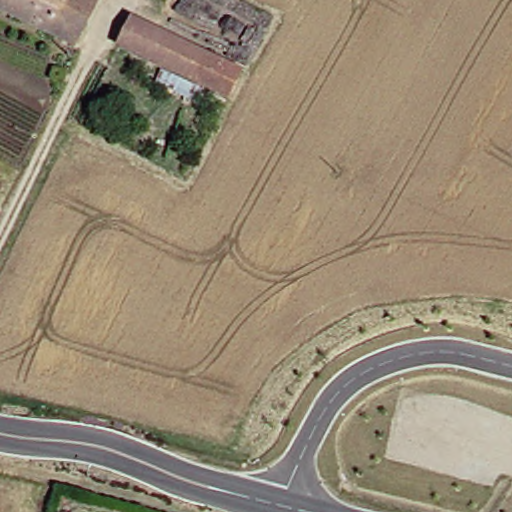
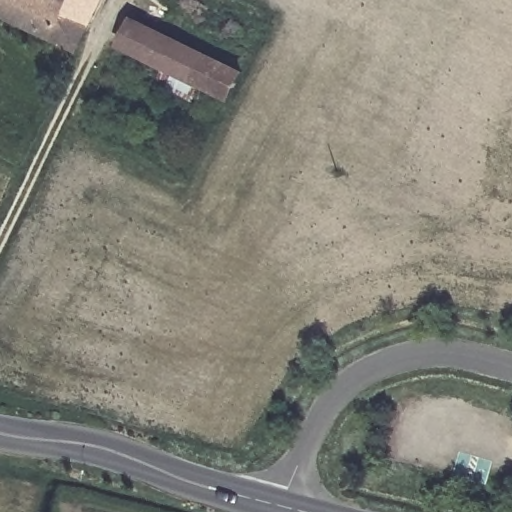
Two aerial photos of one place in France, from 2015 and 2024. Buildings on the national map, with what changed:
unchanged [(0,13),(0,0),(86,0),(73,25),(64,45),(0,13)]
unchanged [(188,80),(113,42),(126,16),(202,54),(188,80)]
unchanged [(224,97),(188,80),(202,54),(237,71),(224,97)]

